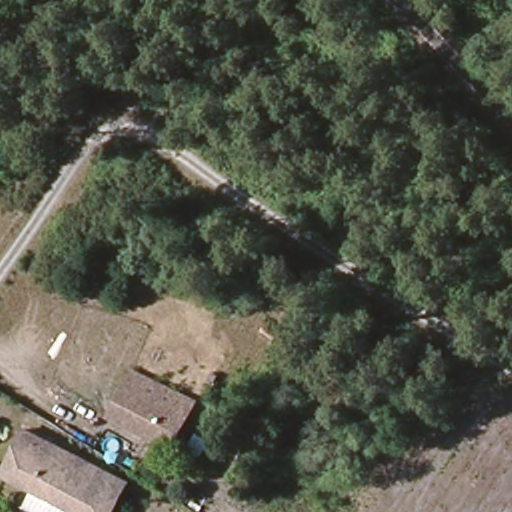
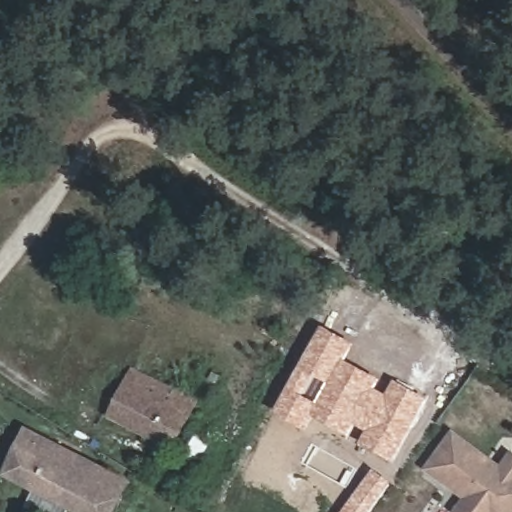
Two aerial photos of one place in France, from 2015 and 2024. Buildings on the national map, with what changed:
new [(395,462),(360,443),(367,431),(357,425),(351,437),(315,417),(308,430),(275,411),(323,325),(357,343),(349,360),(381,379),(376,388),(387,394),(395,380),(430,399),(395,462)]
unchanged [(113,418),(136,372),(191,401),(169,448),(113,418)]
new [(512,452),(512,512),(454,512),(463,498),(424,468),(453,428),(501,464),(511,451),(512,452)]
unchanged [(25,431),(105,475),(87,512),(72,512),(3,477),(25,431)]
demolished [(277,512),(263,512),(250,505),(248,512),(238,512),(189,487),(203,458),(258,487),(260,485),(284,497),(277,512)]
new [(370,512),(342,512),(373,470),(391,482),(370,512)]
unchanged [(125,485),(112,512),(87,512),(105,475),(125,485)]

